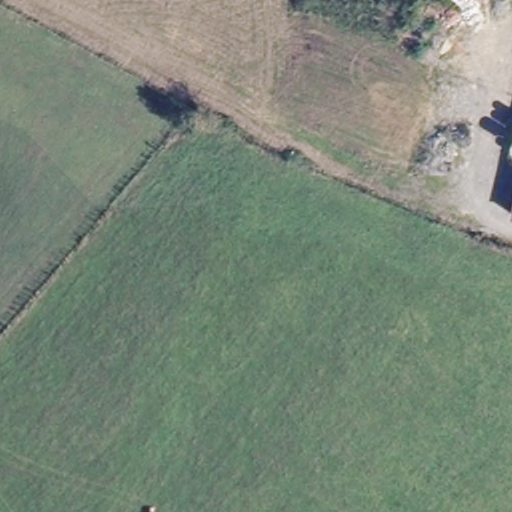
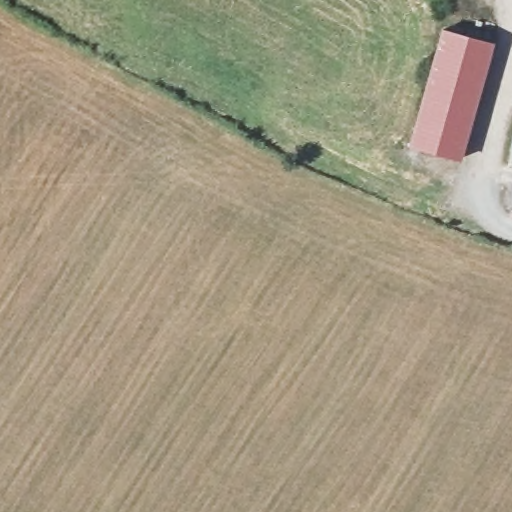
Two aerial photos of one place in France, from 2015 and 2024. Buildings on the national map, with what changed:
new [(441,29),(493,44),(458,158),(408,145),(441,29)]
unchanged [(512,159),(511,159),(512,152),(512,159)]

